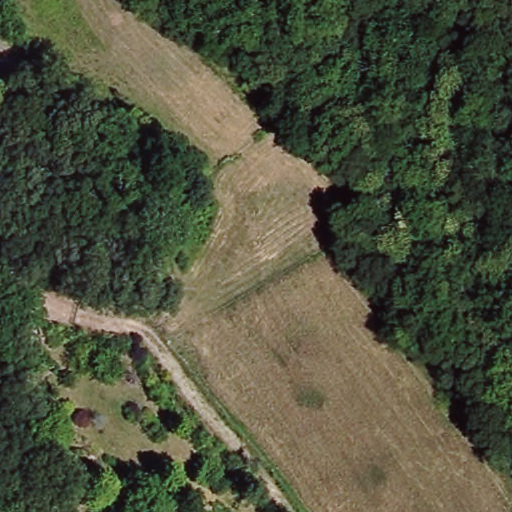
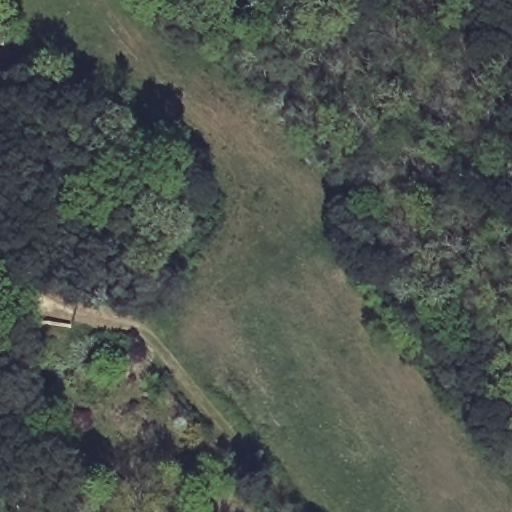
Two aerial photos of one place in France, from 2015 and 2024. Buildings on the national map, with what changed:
[]

